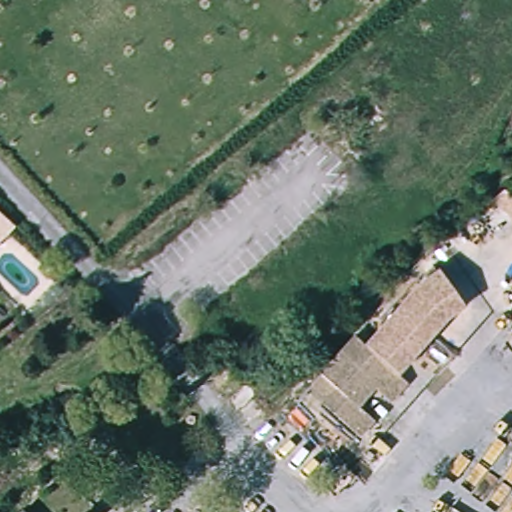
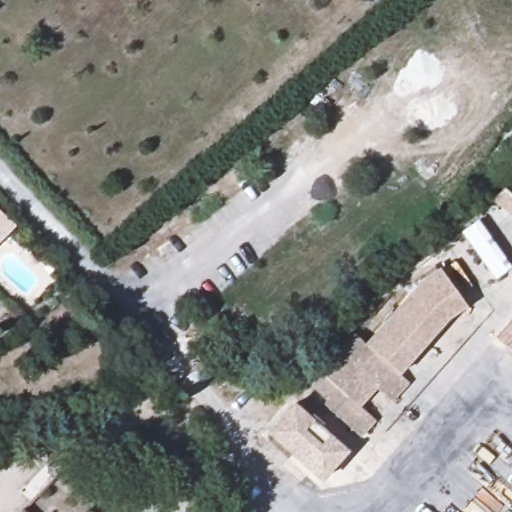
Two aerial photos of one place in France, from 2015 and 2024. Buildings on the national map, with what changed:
unchanged [(493,200),(506,187),(512,192),(512,217),(493,200)]
unchanged [(0,242),(0,212),(16,227),(0,242)]
demolished [(2,277),(0,275),(0,250),(15,262),(2,277)]
unchanged [(318,370),(353,333),(364,343),(364,342),(420,283),(441,271),(465,308),(440,324),(395,372),(404,382),(386,400),(370,385),(365,390),(354,402),(369,417),(354,433),(320,401),(324,397),(308,381),(318,370)]
demolished [(254,431),(226,404),(247,381),(278,409),(254,431)]
new [(350,451),(322,483),(265,433),(293,402),(350,451)]
unchanged [(27,511),(28,512),(26,512),(27,511)]

